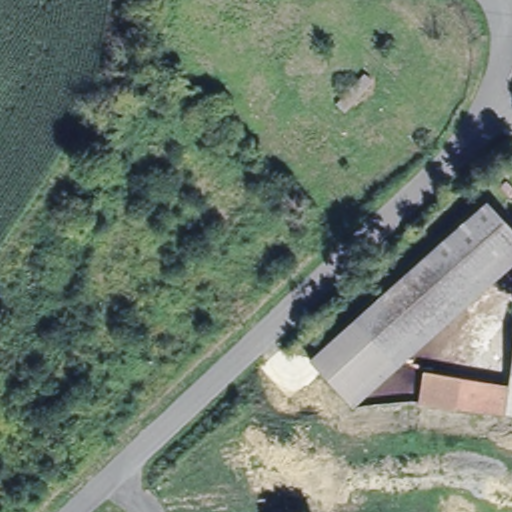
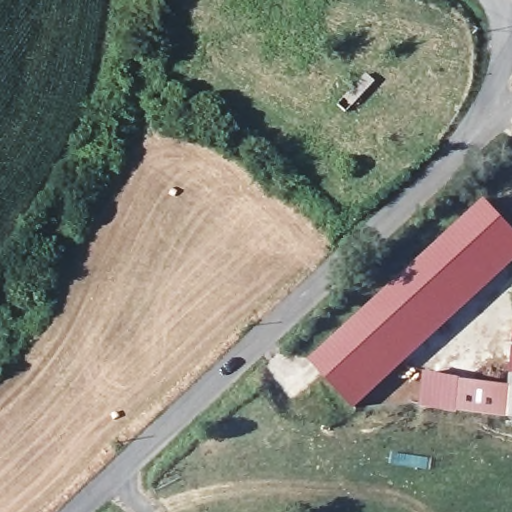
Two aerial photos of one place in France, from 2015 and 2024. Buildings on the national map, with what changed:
unchanged [(341,124),(330,117),(356,85),(367,95),(341,124)]
unchanged [(491,193),(512,216),(512,246),(381,374),(354,400),(316,360),(328,349),(491,193)]
unchanged [(462,406),(418,402),(423,371),(464,380),(462,406)]
unchanged [(462,406),(464,380),(512,385),(512,412),(462,406)]

